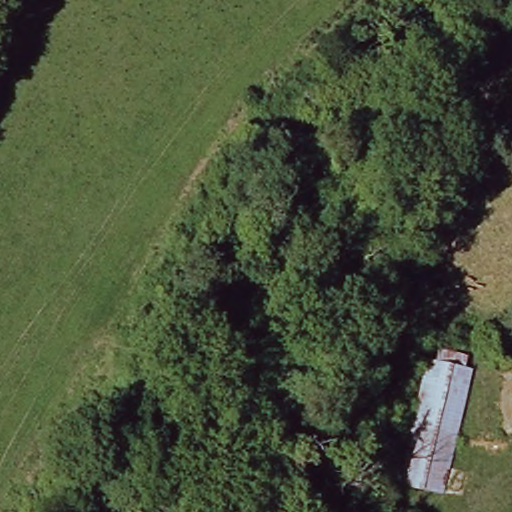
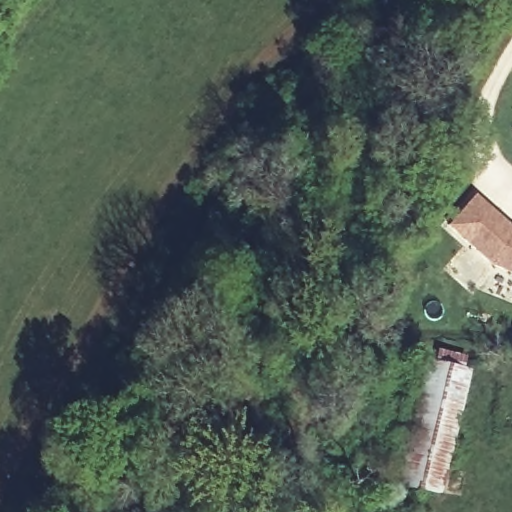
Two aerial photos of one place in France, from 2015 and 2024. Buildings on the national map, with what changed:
new [(492,264),(447,225),(474,195),(512,227),(512,272),(492,264)]
unchanged [(405,483),(430,359),(470,366),(445,491),(405,483)]

